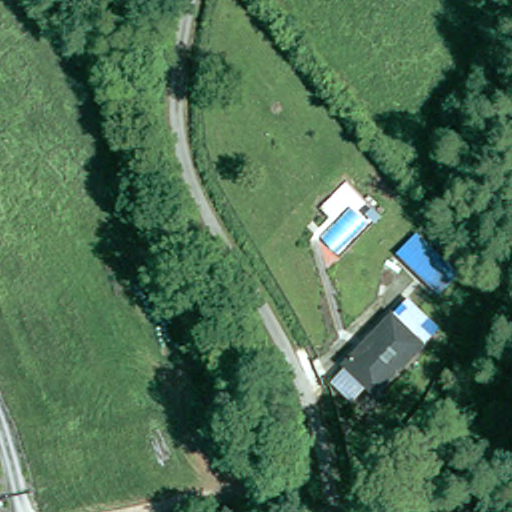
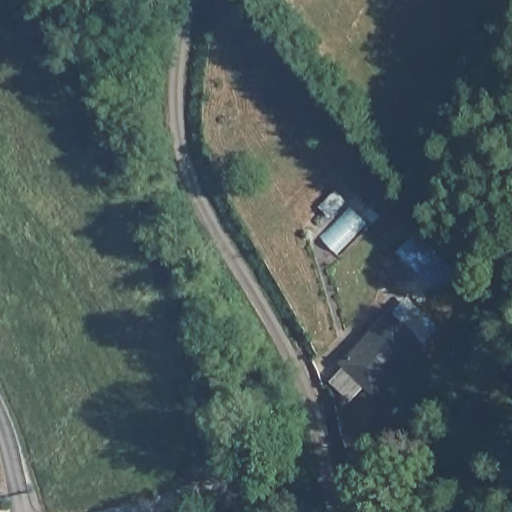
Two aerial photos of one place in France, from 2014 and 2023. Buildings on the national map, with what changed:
unchanged [(438,295),(400,257),(422,234),(460,272),(438,295)]
unchanged [(345,359),(395,312),(408,297),(440,327),(425,341),(376,389),(358,407),(330,386),(350,364),(345,359)]

